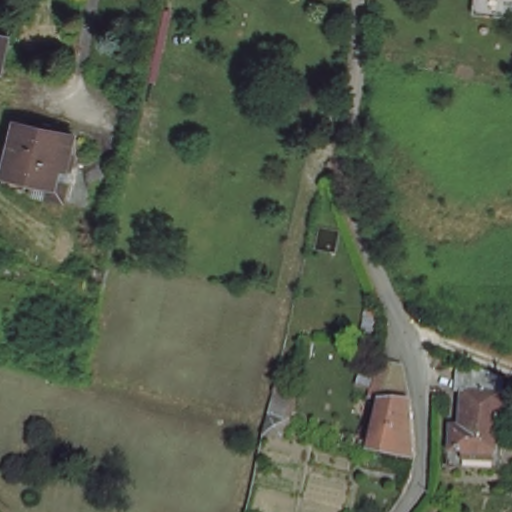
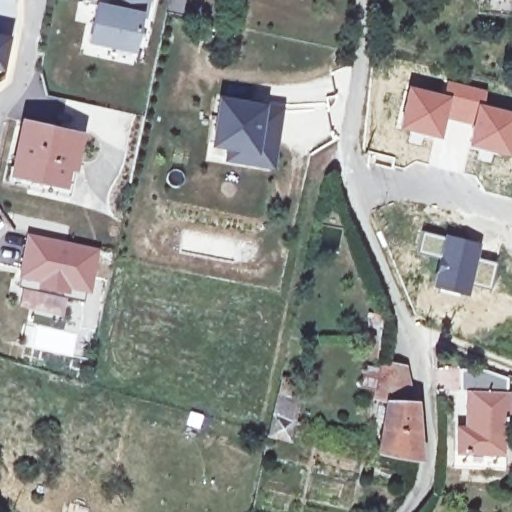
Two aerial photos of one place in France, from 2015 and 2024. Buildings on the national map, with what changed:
new [(147,14),(142,13),(133,53),(85,42),(94,2),(105,4),(105,0),(150,0),(147,14)]
new [(180,13),(165,10),(168,0),(183,0),(180,13)]
unchanged [(512,2),(494,0),(512,0),(512,2)]
unchanged [(6,38),(1,61),(0,67),(0,37),(6,38)]
new [(400,124),(409,88),(445,98),(448,84),(482,93),(479,106),(512,115),(512,119),(504,151),(470,142),(475,120),(442,112),(436,133),(400,124)]
new [(213,143),(220,100),(275,109),(269,143),(274,144),(270,165),(251,162),(227,158),(229,146),(213,143)]
unchanged [(63,169),(59,187),(14,177),(15,172),(25,126),(77,138),(71,168),(70,171),(63,169)]
unchanged [(71,168),(75,169),(68,202),(7,188),(10,171),(15,172),(14,177),(59,187),(63,169),(70,171),(71,168)]
new [(422,230),(481,242),(477,257),(495,261),(487,289),(470,285),(467,295),(430,285),(437,257),(417,251),(422,230)]
new [(17,288),(29,237),(95,251),(84,302),(17,288)]
unchanged [(411,371),(419,407),(423,461),(382,453),(391,406),(379,404),(386,367),(411,371)]
unchanged [(452,462),(452,450),(457,450),(458,428),(467,428),(467,391),(459,391),(460,369),(485,369),(507,378),(507,391),(507,394),(504,434),(500,433),(498,454),(503,455),(502,472),(467,469),(451,468),(452,462)]
unchanged [(269,435),(279,392),(282,378),(299,381),(295,396),(293,395),(283,439),(269,435)]

